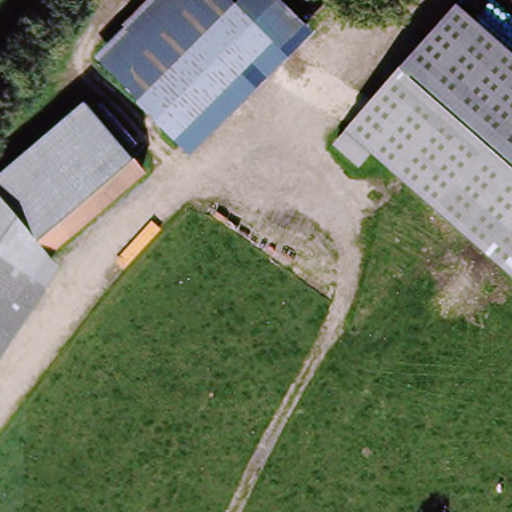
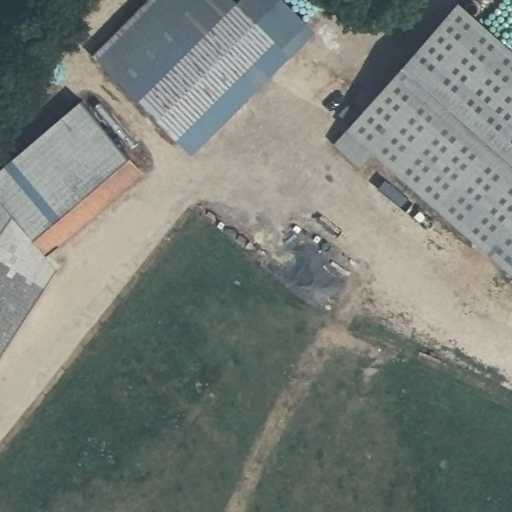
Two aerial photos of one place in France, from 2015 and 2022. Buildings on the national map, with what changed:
unchanged [(245,0),(271,0),(307,35),(188,151),(100,66),(165,0),(222,0),(234,12),(245,0)]
unchanged [(374,155),(361,171),(334,147),(459,5),(512,51),(512,276),(374,155)]
unchanged [(136,159),(143,172),(51,259),(60,275),(0,365),(0,168),(83,97),(120,140),(136,159)]

